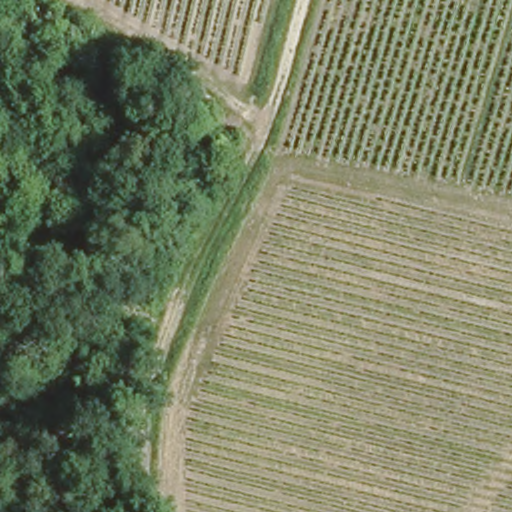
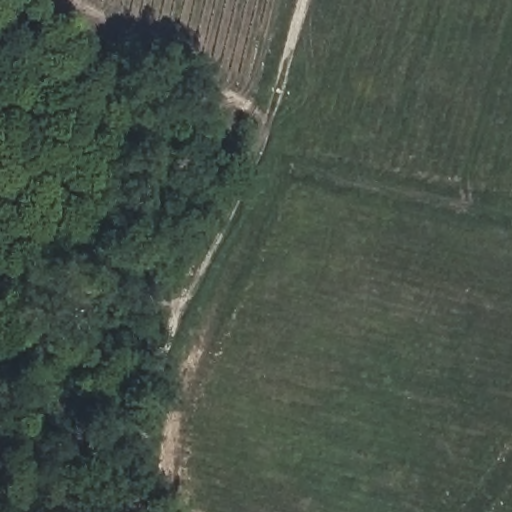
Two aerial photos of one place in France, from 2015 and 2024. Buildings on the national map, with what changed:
[]

